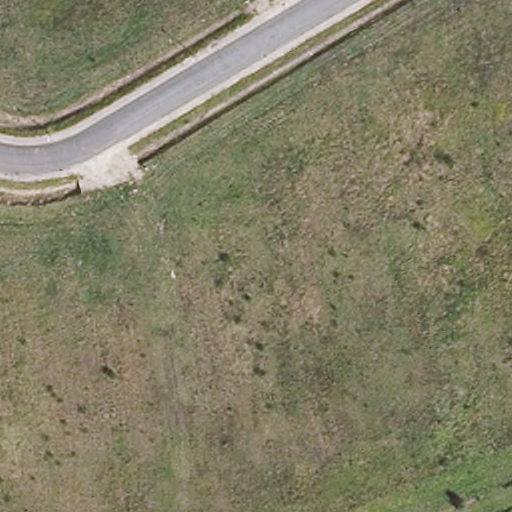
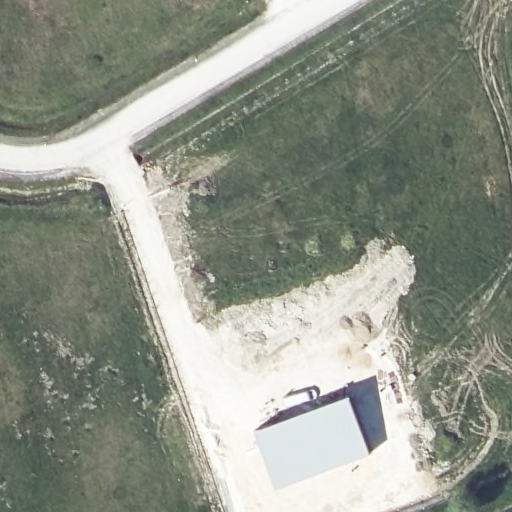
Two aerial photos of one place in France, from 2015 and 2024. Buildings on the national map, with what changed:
new [(305,408),(349,393),(370,453),(274,488),(252,430),(305,408)]

